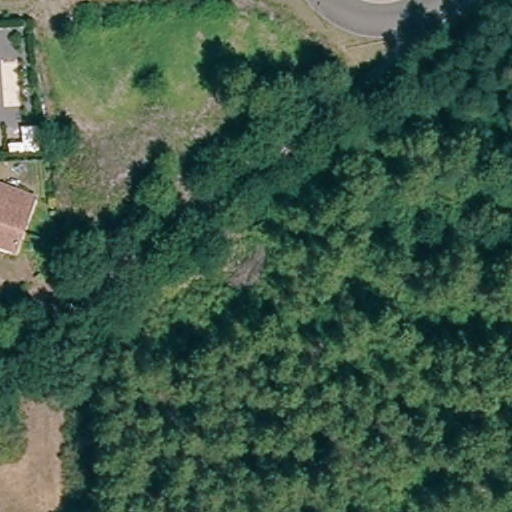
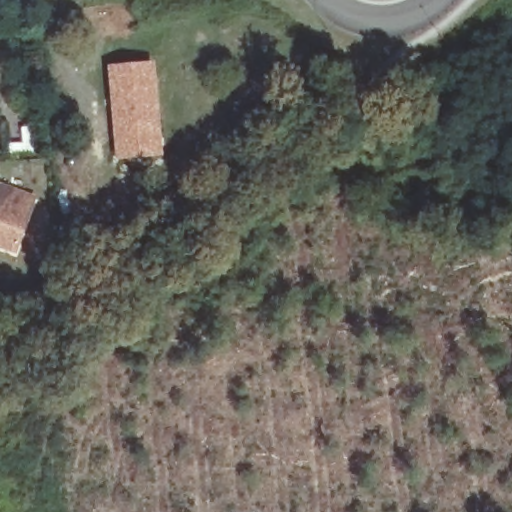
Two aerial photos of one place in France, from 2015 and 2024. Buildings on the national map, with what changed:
new [(155,61),(162,157),(116,161),(108,65),(155,61)]
unchanged [(0,228),(0,185),(5,170),(40,183),(21,236),(0,228)]

